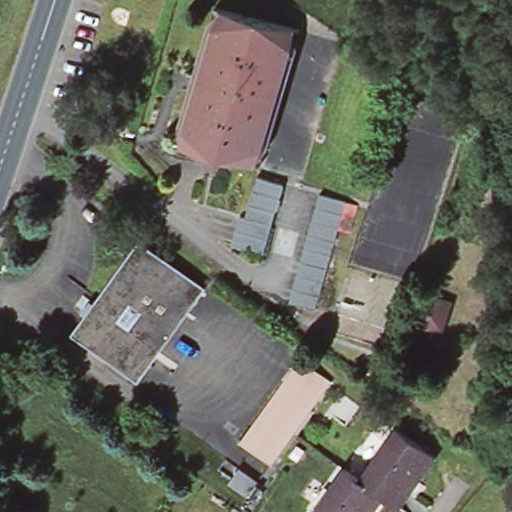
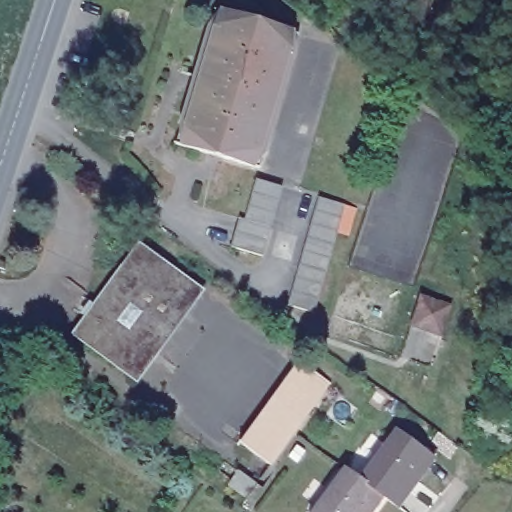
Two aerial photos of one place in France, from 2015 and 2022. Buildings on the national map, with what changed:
unchanged [(252,165),(180,145),(174,144),(179,124),(206,28),(212,8),(219,10),(289,30),(296,32),(291,52),(264,148),(259,167),(252,165)]
unchanged [(235,235),(238,221),(244,222),(247,208),(250,194),(253,181),(281,187),(277,200),(275,214),(272,228),(269,242),(265,257),(232,250),(235,235)]
unchanged [(300,279),(302,265),(306,251),(309,237),(312,223),(315,209),(317,194),(345,200),(342,214),(339,229),(335,243),(332,256),(329,271),(327,284),(324,298),(320,313),(294,308),(297,293),(300,279)]
unchanged [(200,291),(136,381),(73,336),(137,246),(200,291)]
unchanged [(329,384),(270,466),(239,443),(297,362),(329,384)]
unchanged [(394,431),(432,458),(397,508),(380,496),(357,480),(394,431)]
unchanged [(357,480),(380,496),(369,512),(312,512),(342,470),(357,480)]

